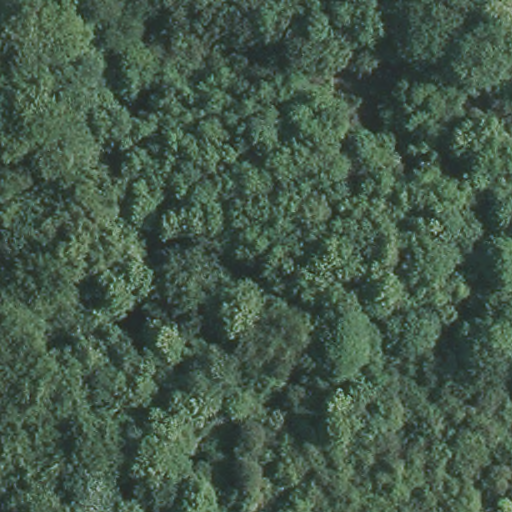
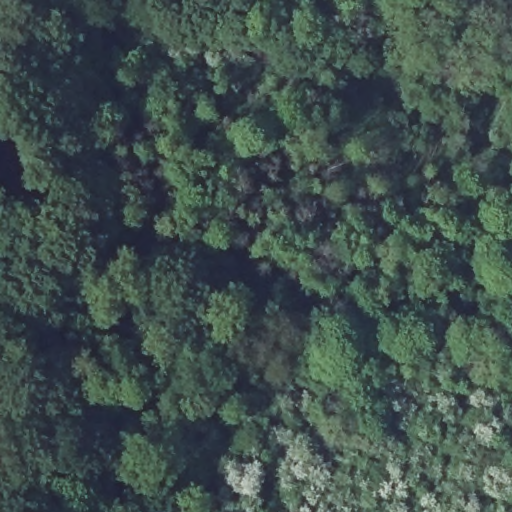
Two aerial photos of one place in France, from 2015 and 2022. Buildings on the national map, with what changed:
[]

